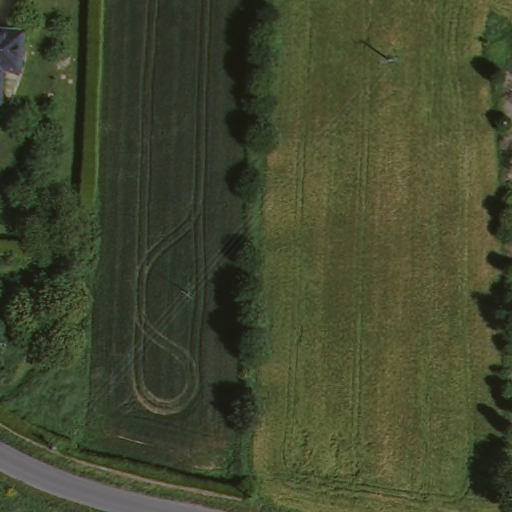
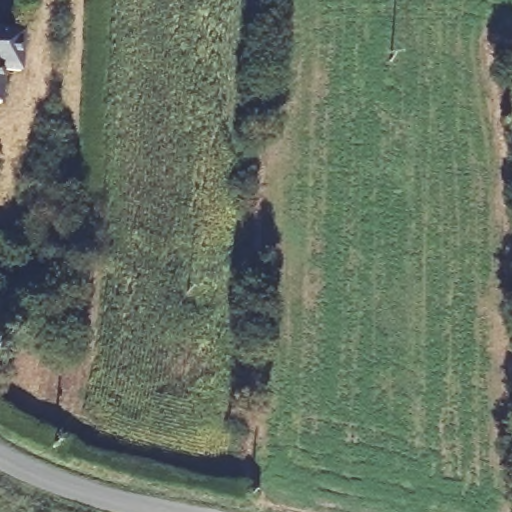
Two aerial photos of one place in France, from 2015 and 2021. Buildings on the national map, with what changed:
unchanged [(5,69),(2,102),(0,102),(0,26),(24,27),(22,70),(5,69)]
unchanged [(80,438),(76,450),(65,445),(70,433),(80,438)]

